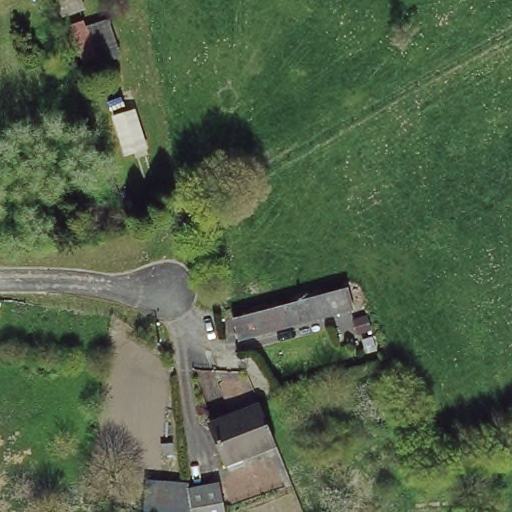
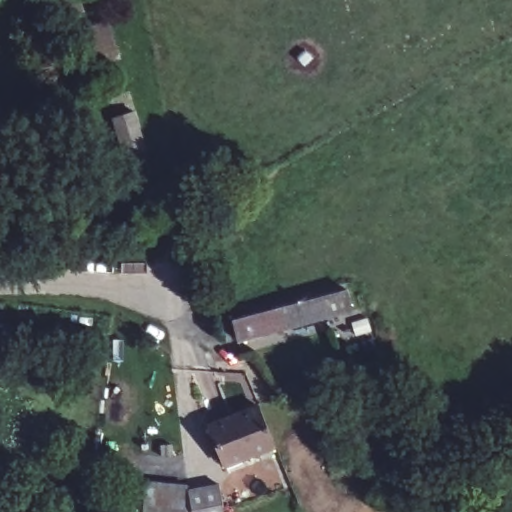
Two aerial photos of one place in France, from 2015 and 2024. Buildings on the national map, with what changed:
unchanged [(85,71),(70,26),(86,18),(89,25),(112,17),(126,57),(85,71)]
unchanged [(131,114),(145,148),(126,155),(113,121),(131,114)]
unchanged [(300,292),(345,282),(356,316),(312,325),(302,298),(300,292)]
unchanged [(302,298),(312,325),(300,327),(234,339),(227,313),(302,298)]
unchanged [(258,407),(272,443),(227,461),(212,424),(258,407)]
unchanged [(230,512),(142,512),(146,477),(192,486),(220,479),(230,512)]

